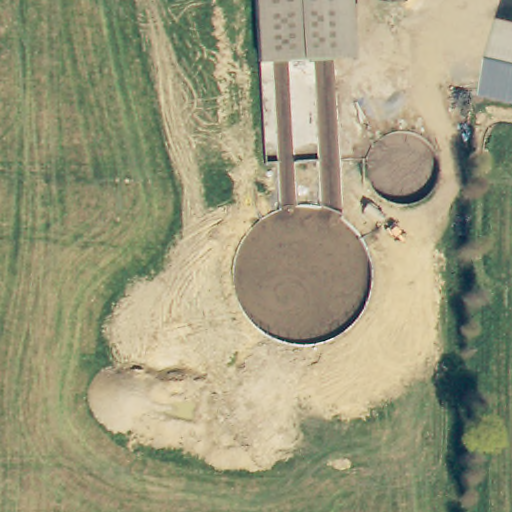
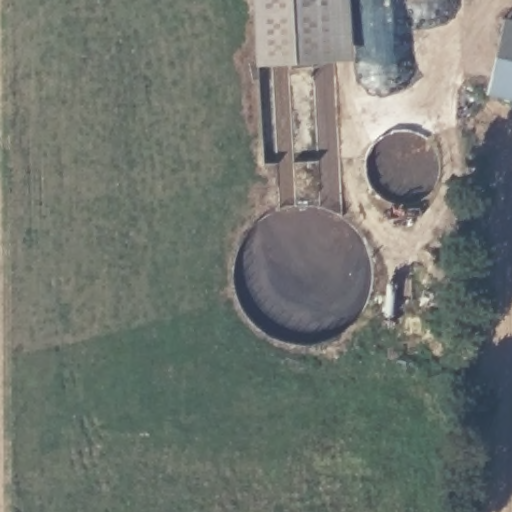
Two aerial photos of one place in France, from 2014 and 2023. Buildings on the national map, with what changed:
unchanged [(352,56),(257,63),(254,0),(349,0),(352,56)]
unchanged [(486,94),(501,18),(512,21),(512,100),(486,94)]

